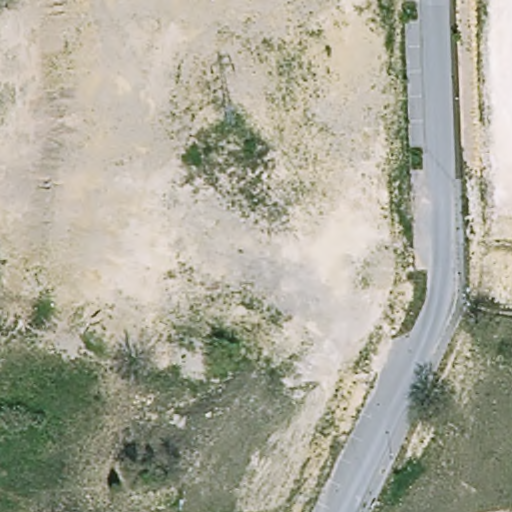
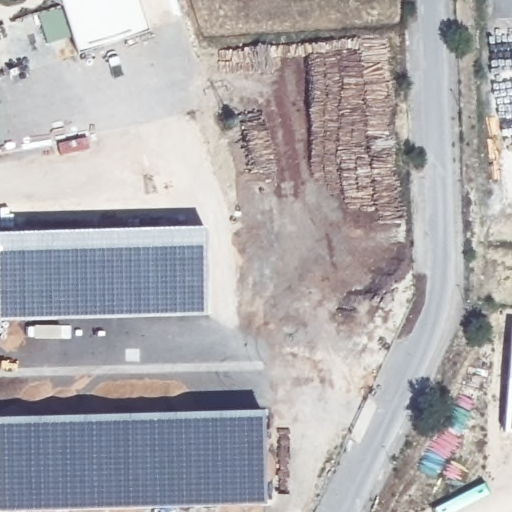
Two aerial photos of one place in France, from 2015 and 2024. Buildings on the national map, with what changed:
new [(75,54),(58,0),(136,0),(146,31),(75,54)]
new [(145,127),(177,116),(209,211),(176,222),(145,127)]
new [(0,321),(0,235),(204,227),(207,314),(0,321)]
new [(512,434),(505,434),(511,327),(512,327),(512,434)]
new [(189,350),(238,372),(212,426),(163,405),(189,350)]
new [(8,512),(0,512),(0,419),(260,411),(263,504),(8,512)]

